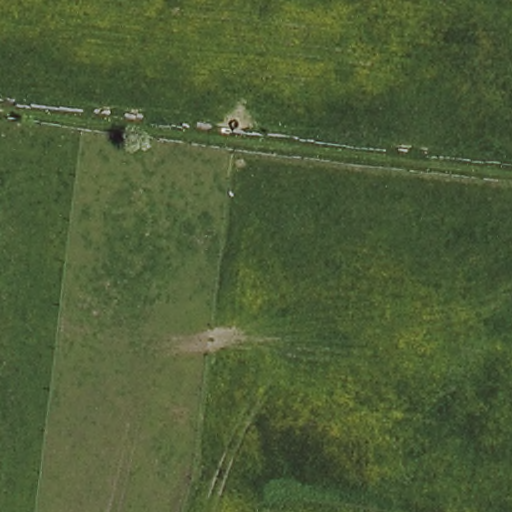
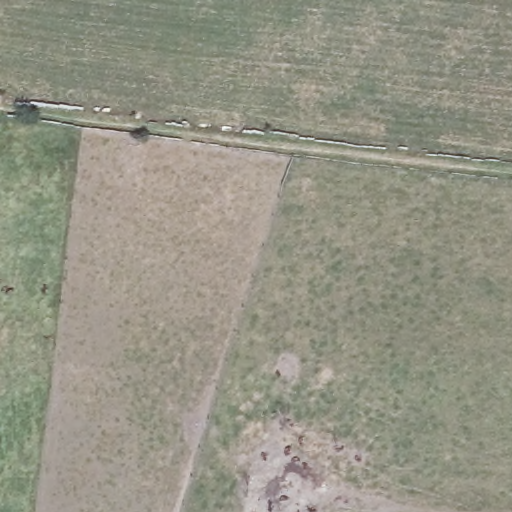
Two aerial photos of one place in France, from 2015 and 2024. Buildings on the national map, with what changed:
[]

